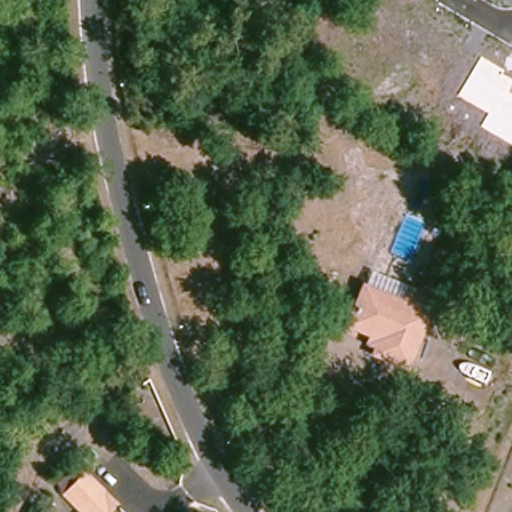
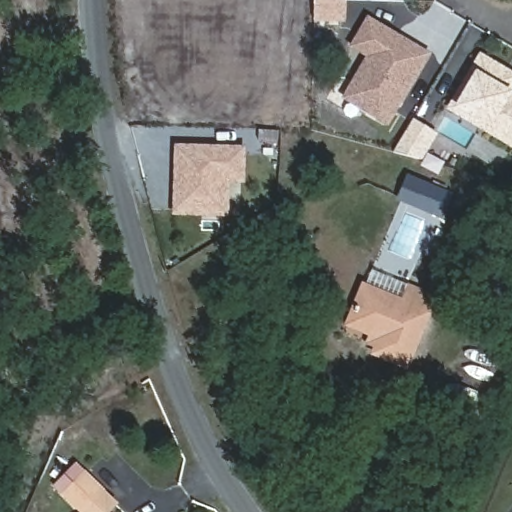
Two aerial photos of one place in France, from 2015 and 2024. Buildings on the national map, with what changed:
new [(387,126),(340,97),(364,56),(348,46),(366,15),(429,54),(387,126)]
new [(510,90),(512,92),(512,149),(445,109),(478,52),(512,71),(512,87),(510,90)]
new [(421,160),(391,151),(411,117),(438,133),(421,160)]
new [(200,212),(174,211),(174,189),(174,181),(175,150),(241,150),(240,179),(222,179),(221,198),(221,212),(200,212)]
new [(396,200),(406,177),(453,194),(442,219),(396,200)]
unchanged [(369,332),(349,325),(364,286),(402,301),(408,286),(434,297),(406,365),(374,353),(376,347),(366,344),(369,332)]
unchanged [(87,476),(104,495),(114,505),(108,512),(87,512),(69,495),(87,476)]

